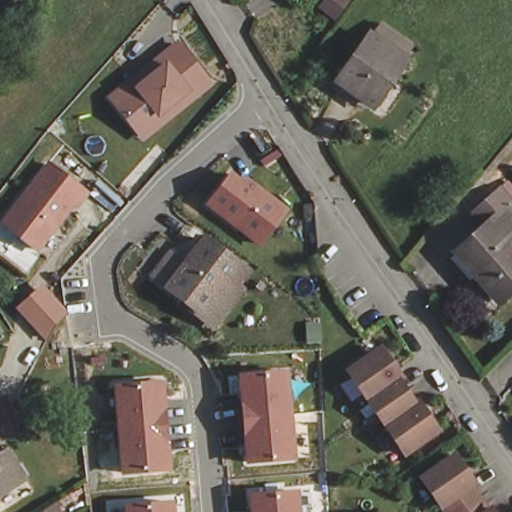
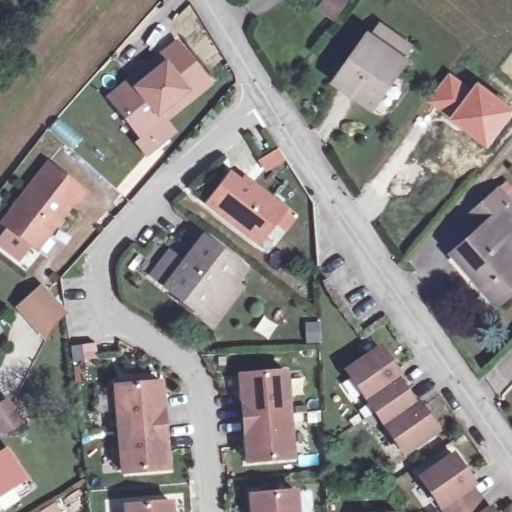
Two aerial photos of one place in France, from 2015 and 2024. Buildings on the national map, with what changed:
unchanged [(315,1),(316,0),(338,0),(331,9),(315,1)]
unchanged [(369,37),(379,21),(411,43),(368,109),(333,85),(366,35),(369,37)]
unchanged [(128,114),(112,95),(133,78),(159,56),(177,41),(209,80),(152,128),(144,134),(128,114)]
new [(449,71),(471,88),(449,117),(427,100),(449,71)]
new [(471,88),(478,79),(512,105),(512,116),(489,148),(449,117),(471,88)]
unchanged [(88,190),(78,203),(75,200),(39,248),(4,221),(50,161),(88,190)]
unchanged [(206,207),(230,172),(241,178),(243,175),(290,209),(262,247),(206,207)]
unchanged [(503,305),(477,279),(473,284),(453,265),(484,234),(474,224),(501,197),(512,209),(512,297),(503,305)]
unchanged [(206,318),(151,278),(168,256),(183,267),(203,240),(245,272),(233,287),(230,284),(206,318)]
new [(24,305),(39,289),(53,302),(55,299),(69,313),(59,324),(52,338),(34,320),(37,318),(24,305)]
unchanged [(441,427),(407,448),(350,366),(384,344),(397,364),(403,373),(419,395),(425,404),(441,427)]
unchanged [(248,466),(239,375),(289,370),(299,461),(248,466)]
unchanged [(123,476),(114,386),(164,381),(173,471),(123,476)]
unchanged [(24,419),(8,429),(0,416),(0,404),(11,398),(15,404),(24,419)]
unchanged [(27,477),(0,494),(0,452),(6,448),(27,477)]
unchanged [(428,478),(463,454),(473,469),(483,485),(501,511),(501,512),(450,512),(428,478)]
unchanged [(251,494),(301,490),(303,512),(252,512),(251,494)]
unchanged [(125,505),(174,501),(175,512),(126,512),(125,505)]

